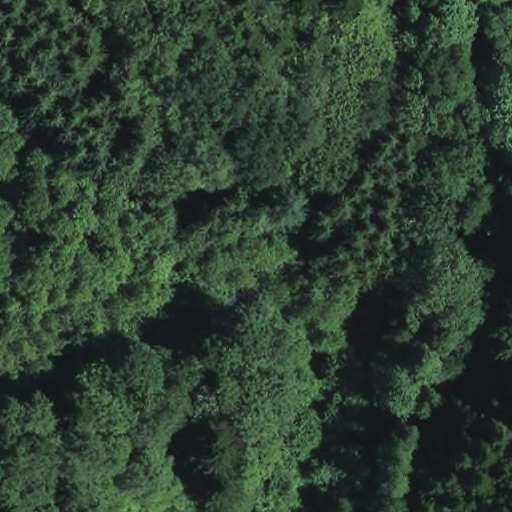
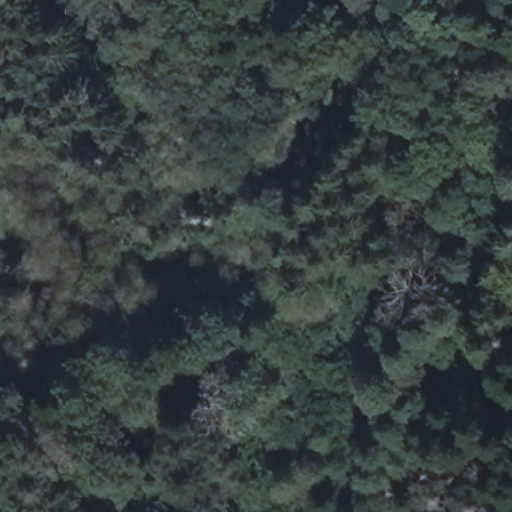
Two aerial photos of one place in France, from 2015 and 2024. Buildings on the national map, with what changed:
unchanged [(512,512),(481,512),(479,490),(512,486),(512,512)]

